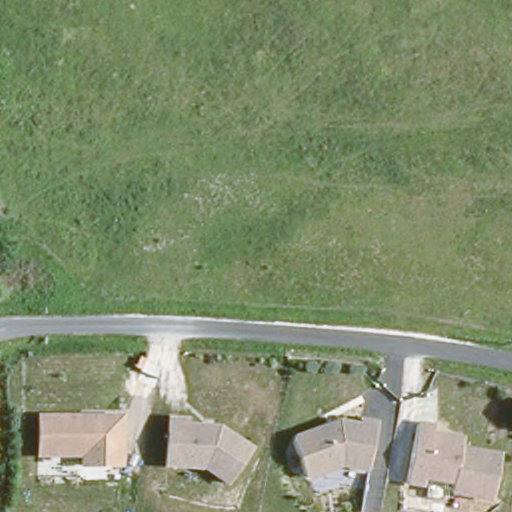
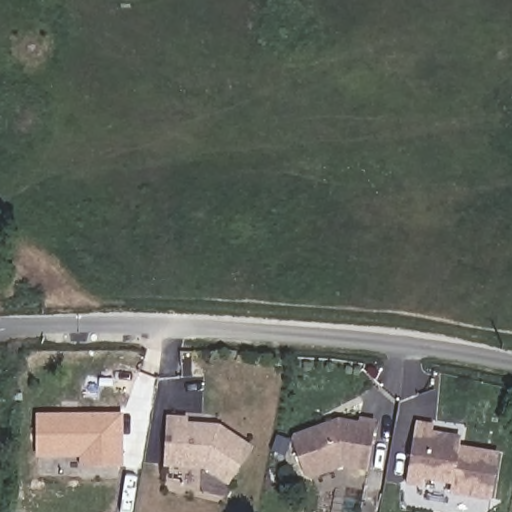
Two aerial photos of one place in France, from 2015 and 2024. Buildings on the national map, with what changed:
unchanged [(127,469),(84,470),(82,460),(37,460),(36,415),(122,414),(127,469)]
unchanged [(235,486),(204,470),(167,470),(167,417),(189,415),(191,423),(222,426),(255,450),(235,486)]
unchanged [(347,468),(310,486),(290,437),(337,420),(359,423),(359,415),(376,421),(365,471),(347,468)]
unchanged [(451,496),(453,486),(428,482),(427,489),(408,485),(416,423),(431,424),(431,432),(463,438),(463,447),(501,454),(493,503),(451,496)]

